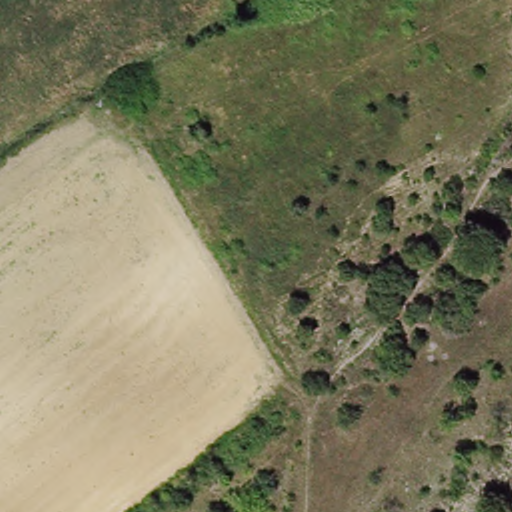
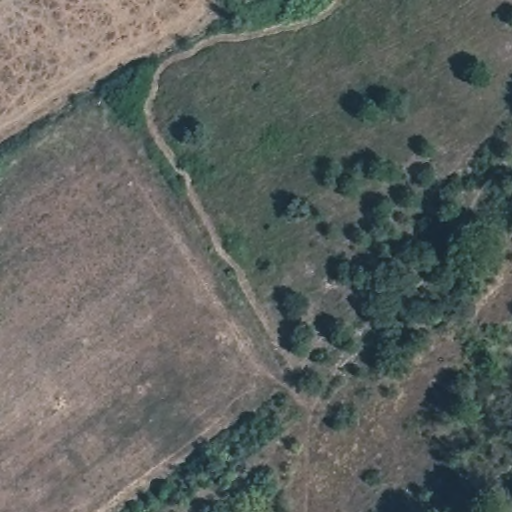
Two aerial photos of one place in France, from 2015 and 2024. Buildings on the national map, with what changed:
[]

